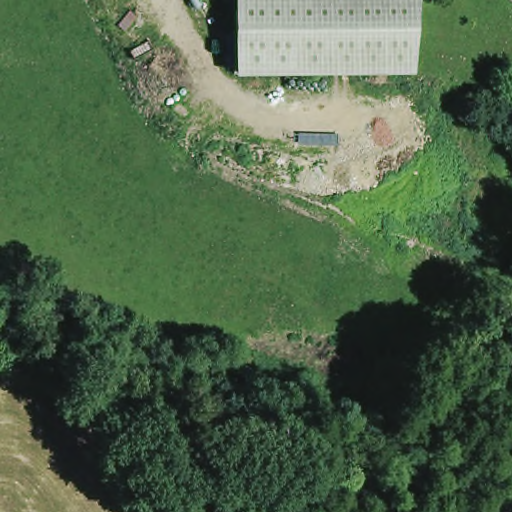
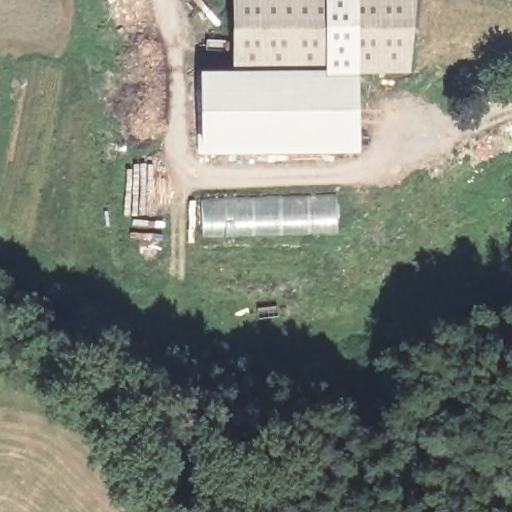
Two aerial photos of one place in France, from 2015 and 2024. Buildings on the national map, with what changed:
unchanged [(405,76),(352,78),(235,77),(235,0),(413,0),(405,76)]
new [(353,155),(194,157),(195,78),(235,77),(352,78),(353,155)]
new [(332,196),(332,235),(200,240),(197,204),(332,196)]

